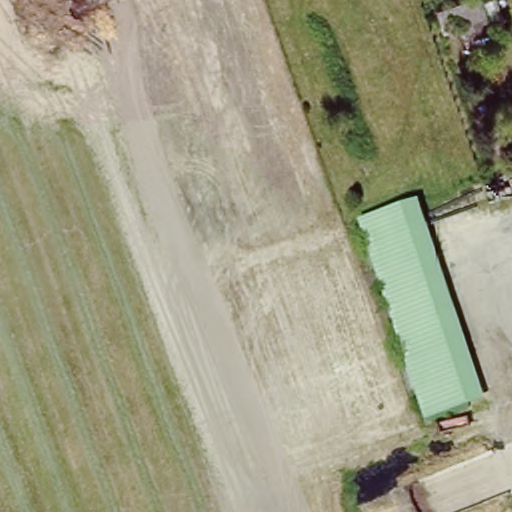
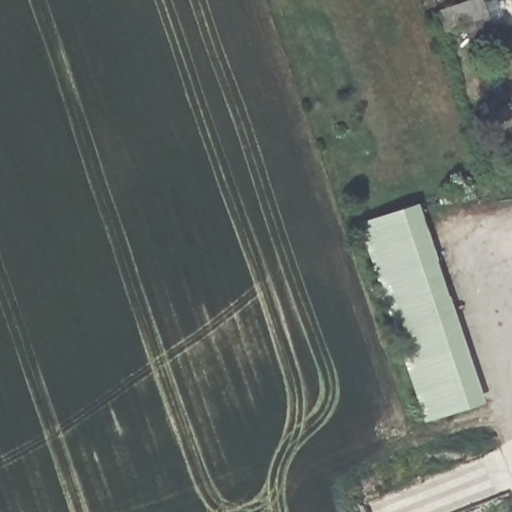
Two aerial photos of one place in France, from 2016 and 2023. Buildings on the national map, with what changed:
unchanged [(465,0),(481,0),(492,28),(469,37),(464,23),(448,29),(441,10),(465,0)]
unchanged [(419,201),(486,398),(422,419),(358,220),(419,201)]

